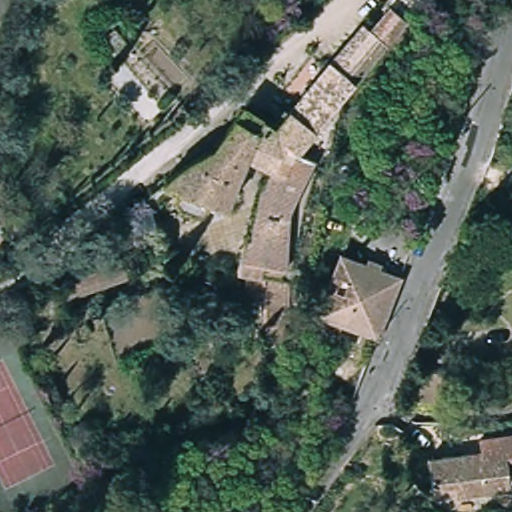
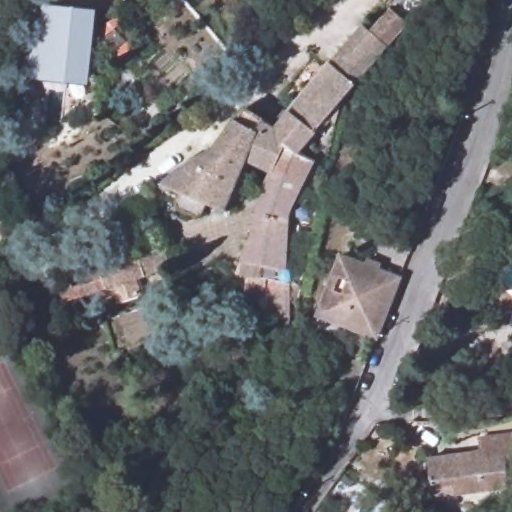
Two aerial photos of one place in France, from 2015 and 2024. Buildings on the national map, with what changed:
new [(27,4),(96,10),(88,87),(21,80),(27,4)]
unchanged [(393,7),(410,25),(389,49),(298,151),(316,161),(279,268),(282,268),(279,322),(261,322),(260,302),(243,302),(244,270),(239,267),(231,266),(270,165),(248,155),(225,201),(206,192),(200,204),(196,205),(176,196),(175,192),(180,180),(163,172),(212,146),(250,104),(277,125),(365,25),(370,31),(393,7)]
demolished [(134,53),(123,61),(115,50),(125,42),(134,53)]
unchanged [(155,231),(124,240),(118,214),(146,198),(155,231)]
unchanged [(53,286),(159,250),(165,267),(57,303),(53,286)]
unchanged [(398,277),(377,338),(317,318),(339,257),(398,277)]
unchanged [(430,335),(487,358),(488,404),(447,396),(412,383),(430,335)]
unchanged [(427,463),(479,455),(477,442),(512,437),(512,464),(505,466),(509,495),(453,502),(453,501),(431,503),(430,495),(427,463)]

